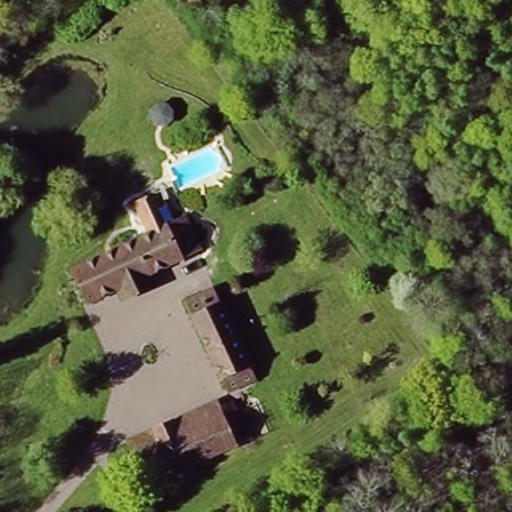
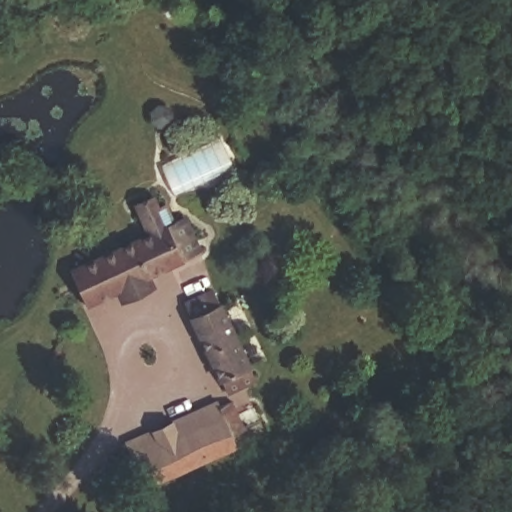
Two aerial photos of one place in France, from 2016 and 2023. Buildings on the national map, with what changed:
unchanged [(170,222),(187,260),(95,308),(77,270),(170,222)]
unchanged [(224,301),(253,362),(257,381),(227,395),(218,384),(191,321),(184,303),(217,284),(224,301)]
unchanged [(150,493),(125,438),(220,397),(246,445),(150,493)]

